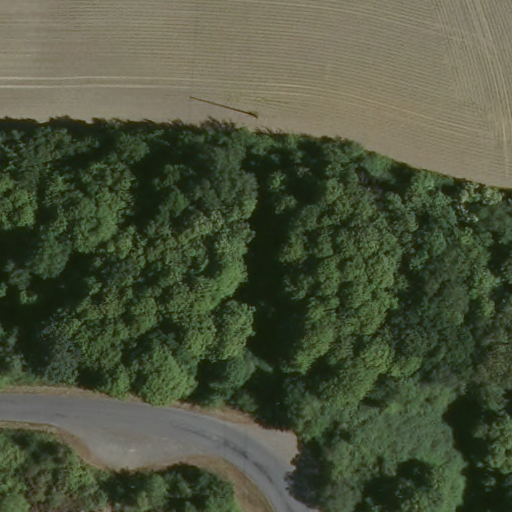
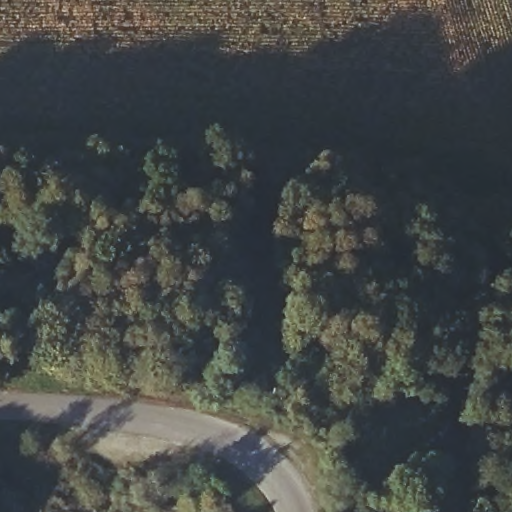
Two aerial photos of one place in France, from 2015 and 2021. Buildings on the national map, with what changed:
unchanged [(0,505),(2,512),(0,512),(0,505)]

